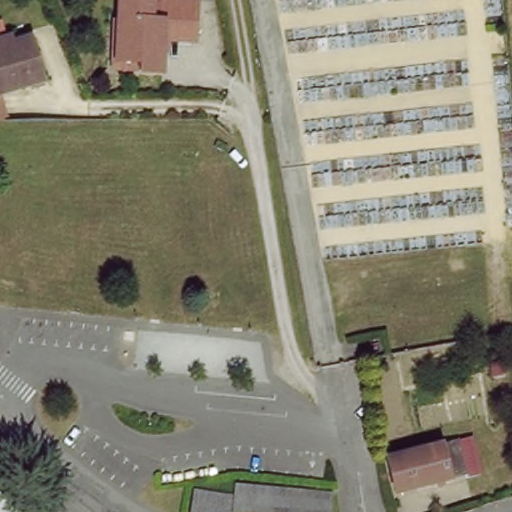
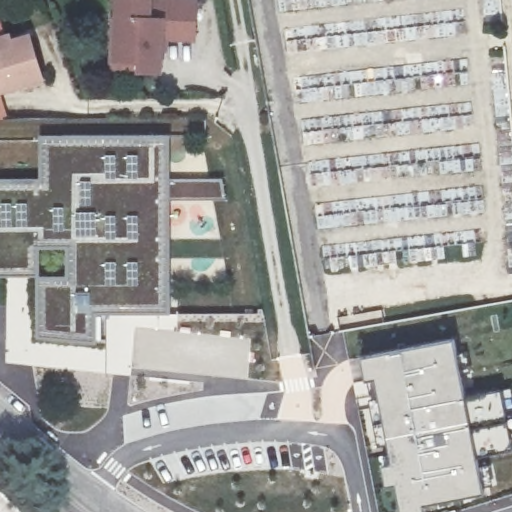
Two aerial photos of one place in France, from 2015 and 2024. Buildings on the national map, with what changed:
unchanged [(120,0),(197,0),(196,35),(164,34),(162,72),(138,71),(117,70),(117,60),(120,0)]
unchanged [(10,34),(26,28),(27,34),(41,76),(0,90),(0,37),(10,34)]
unchanged [(5,118),(0,118),(0,105),(5,118)]
new [(170,314),(94,315),(94,344),(35,340),(34,277),(37,250),(3,250),(3,248),(0,248),(0,179),(5,179),(5,195),(48,195),(48,179),(40,179),(40,135),(171,136),(170,180),(175,180),(193,180),(230,180),(234,202),(175,202),(170,200),(170,314)]
new [(5,179),(48,179),(48,195),(5,195),(5,179)]
new [(3,248),(3,250),(37,250),(34,277),(0,277),(0,248),(3,248)]
new [(377,381),(367,383),(362,358),(454,340),(467,398),(499,391),(512,445),(512,449),(476,455),(483,493),(424,506),(425,512),(403,512),(398,485),(388,487),(384,467),(394,465),(377,381)]
demolished [(460,477),(389,493),(382,457),(452,442),(460,477)]
unchanged [(37,512),(0,512),(0,477),(37,512)]
unchanged [(236,496),(236,483),(332,491),(331,512),(190,512),(194,490),(236,496)]

